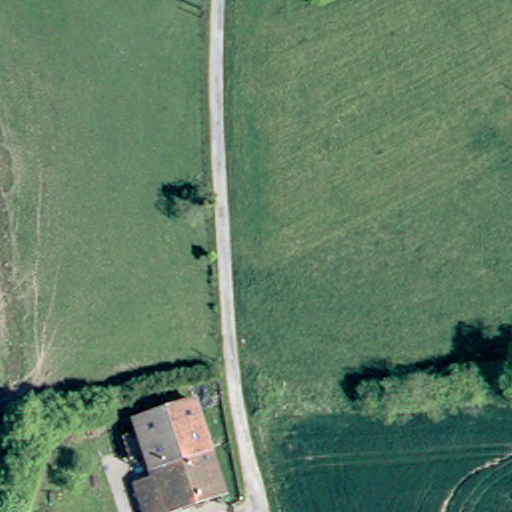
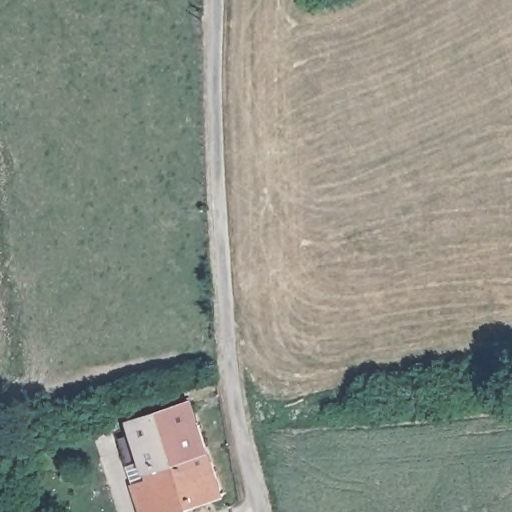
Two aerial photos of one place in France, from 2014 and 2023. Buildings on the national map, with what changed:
unchanged [(157,486),(138,424),(197,406),(225,497),(183,512),(146,512),(140,493),(157,486)]

